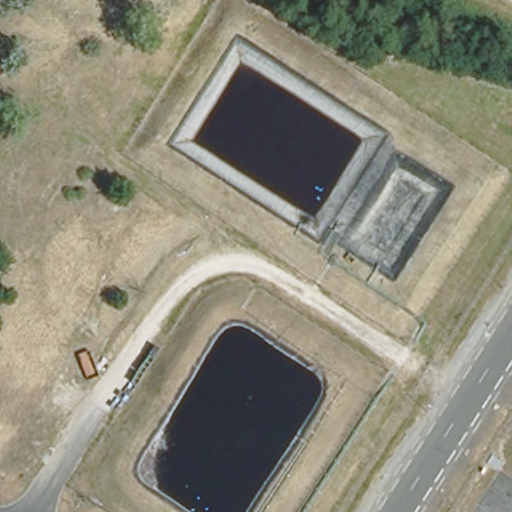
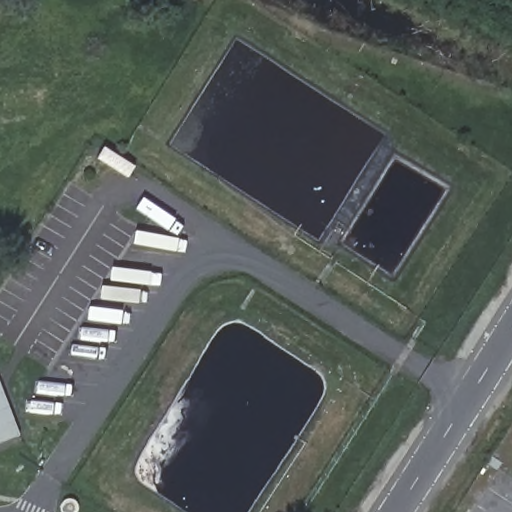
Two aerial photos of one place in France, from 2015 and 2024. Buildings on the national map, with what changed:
new [(20,436),(0,443),(0,383),(20,436)]

